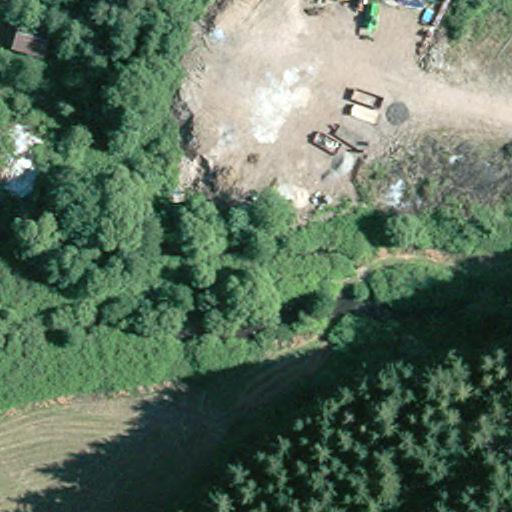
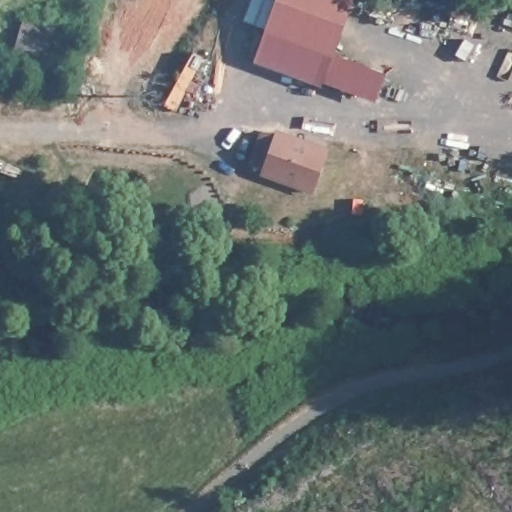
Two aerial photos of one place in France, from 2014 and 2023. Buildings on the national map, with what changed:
new [(371,97),(324,79),(321,87),(254,62),(277,0),(353,0),(336,54),(381,71),(371,97)]
unchanged [(33,63),(3,53),(13,22),(44,32),(33,63)]
new [(275,135),(276,130),(328,149),(313,194),(259,175),(261,169),(248,164),(259,129),(275,135)]

